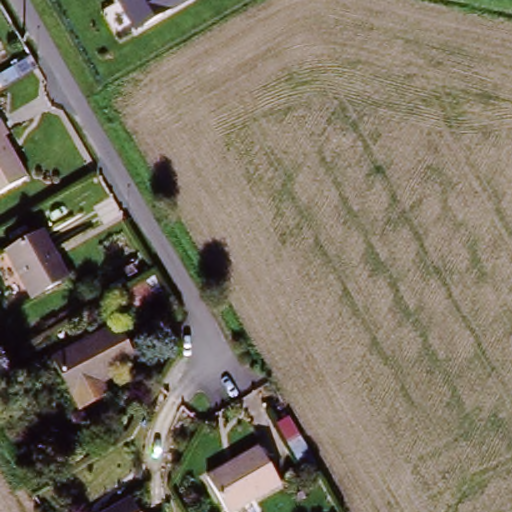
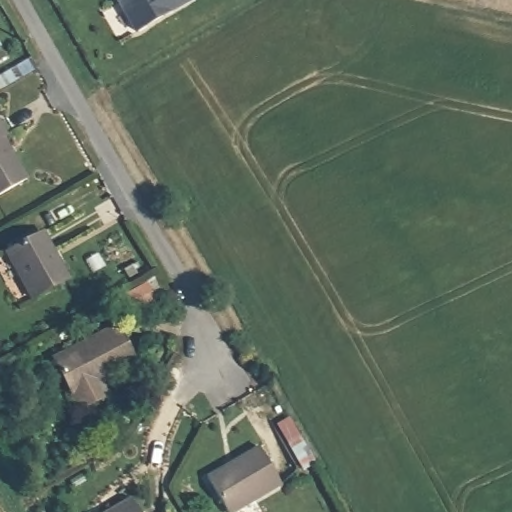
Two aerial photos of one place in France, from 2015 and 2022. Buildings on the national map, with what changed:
unchanged [(196,0),(133,36),(112,0),(196,0)]
unchanged [(12,132),(7,135),(32,175),(0,195),(0,120),(3,118),(12,132)]
unchanged [(14,251),(22,247),(47,231),(74,275),(47,291),(40,295),(14,251)]
unchanged [(147,296),(127,309),(118,296),(139,283),(147,296)]
unchanged [(57,360),(73,351),(116,325),(136,357),(92,384),(77,393),(57,360)]
unchanged [(242,512),(233,512),(213,480),(262,451),(283,487),(242,512)]
unchanged [(142,512),(107,512),(132,495),(142,512)]

